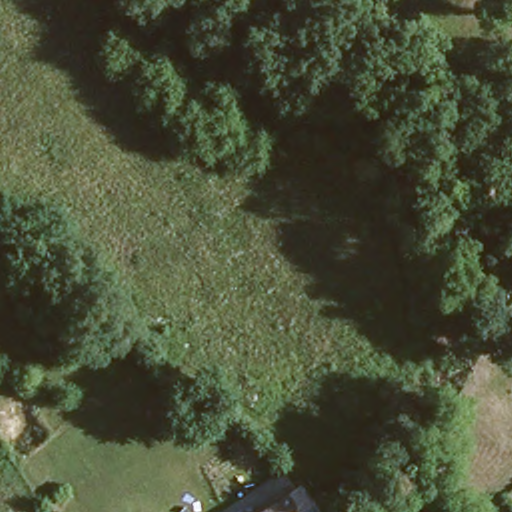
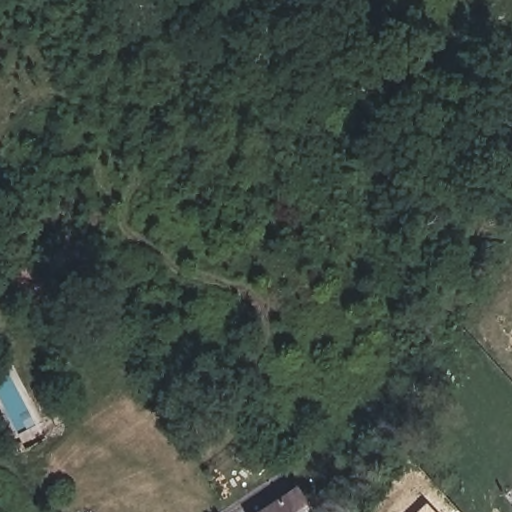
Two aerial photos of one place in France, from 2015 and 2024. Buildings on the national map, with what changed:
unchanged [(247,510),(272,492),(287,512),(249,512),(247,510)]
new [(425,503),(434,512),(415,512),(425,503)]

